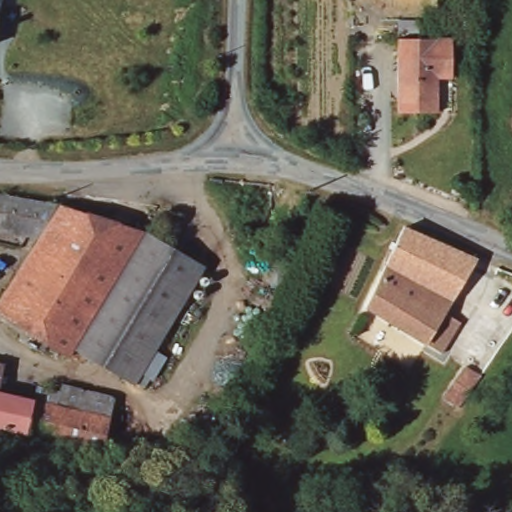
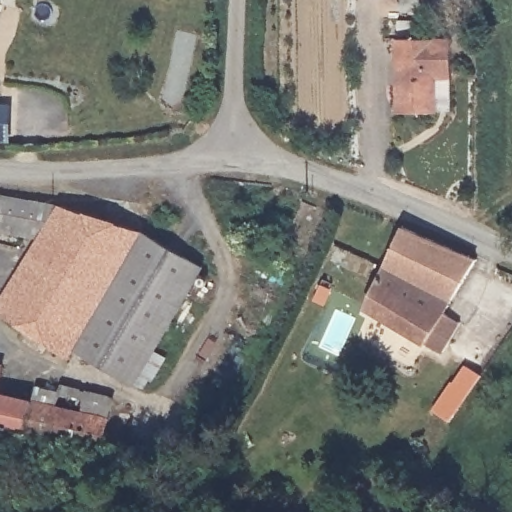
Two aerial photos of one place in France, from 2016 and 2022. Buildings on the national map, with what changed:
unchanged [(452,40),(450,71),(450,76),(437,76),(435,76),(435,82),(434,111),(423,111),(401,113),(401,39),(452,37),(452,40)]
unchanged [(76,347),(71,355),(0,308),(0,302),(44,237),(0,225),(0,189),(65,205),(152,238),(213,275),(138,383),(76,347)]
unchanged [(443,308),(456,320),(437,350),(395,323),(368,306),(406,229),(473,260),(443,308)]
unchanged [(1,390),(0,390),(0,363),(8,365),(1,390)]
unchanged [(93,447),(30,431),(28,430),(21,428),(16,447),(0,443),(0,390),(1,390),(38,400),(43,387),(66,392),(68,386),(120,400),(106,450),(93,447)]
unchanged [(458,426),(444,416),(465,387),(480,397),(458,426)]

